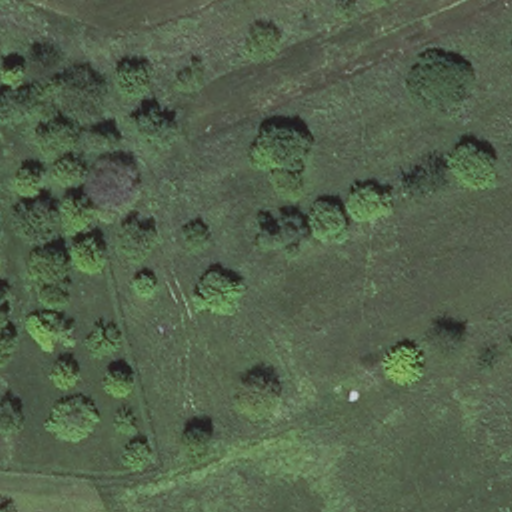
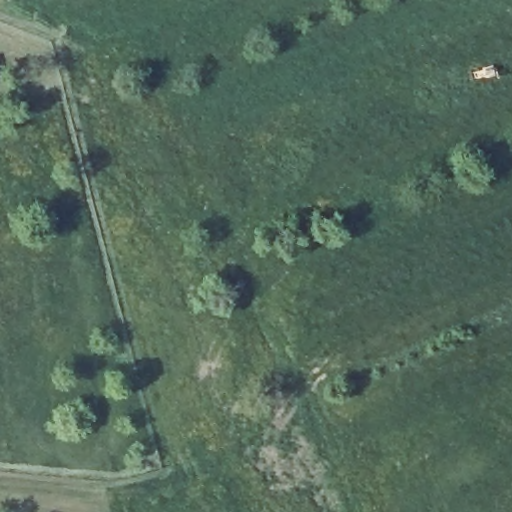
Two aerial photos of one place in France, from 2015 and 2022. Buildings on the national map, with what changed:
[]

